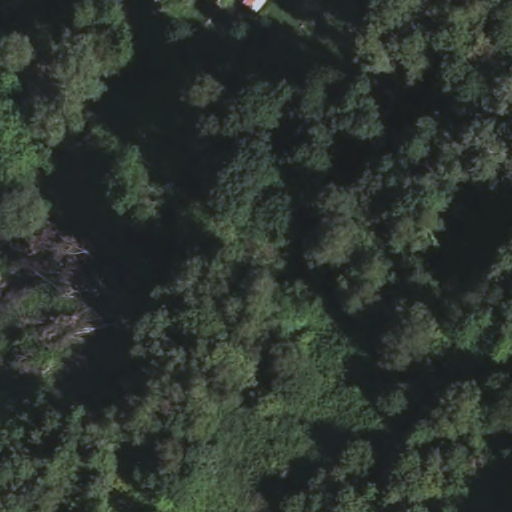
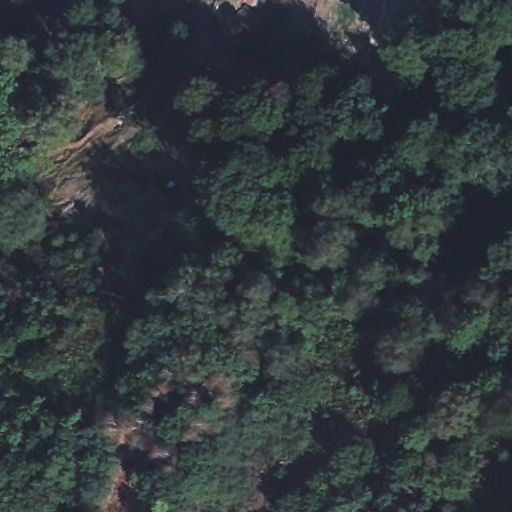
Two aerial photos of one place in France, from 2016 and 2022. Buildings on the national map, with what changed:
unchanged [(244,0),(265,0),(258,10),(244,0)]

